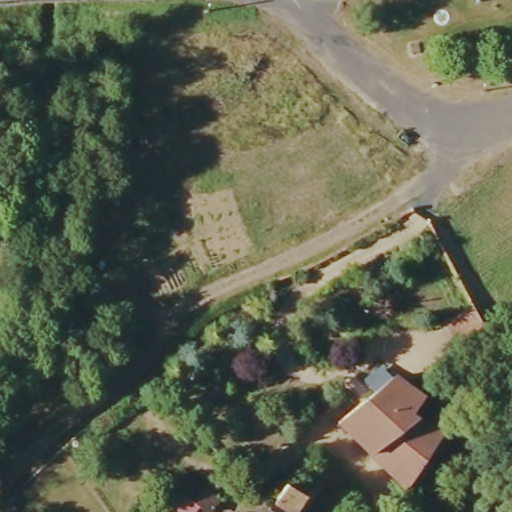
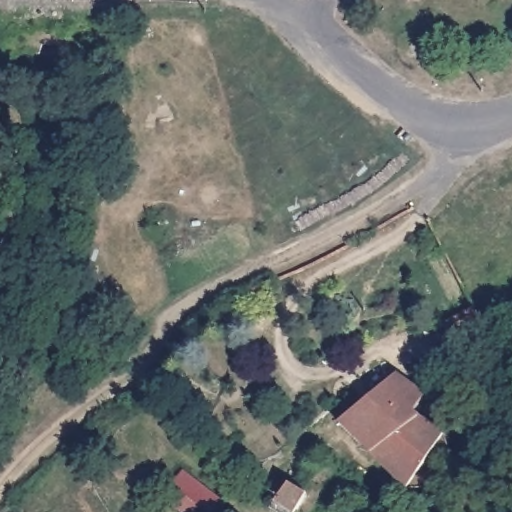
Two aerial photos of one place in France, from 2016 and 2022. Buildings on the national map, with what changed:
unchanged [(441,462),(449,467),(430,496),(411,480),(400,490),(324,415),(334,405),(345,417),(388,378),(419,401),(407,414),(439,435),(435,440),(450,450),(441,462)]
unchanged [(177,494),(168,487),(180,471),(218,497),(207,512),(201,512),(197,508),(194,512),(176,512),(168,506),(177,494)]
unchanged [(296,512),(279,512),(273,509),(285,489),(303,497),(296,512)]

